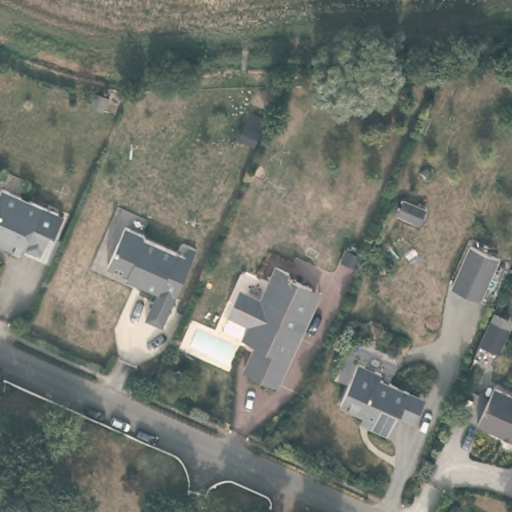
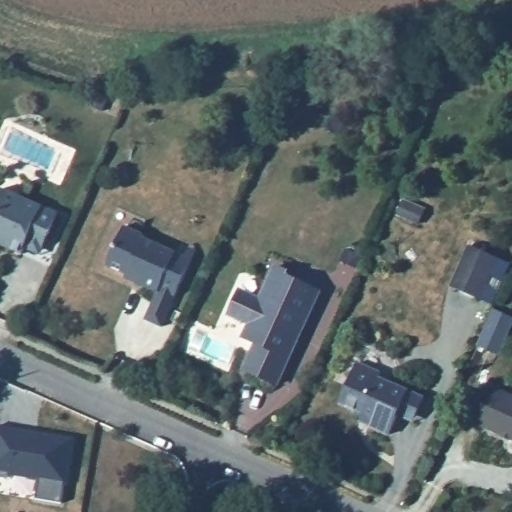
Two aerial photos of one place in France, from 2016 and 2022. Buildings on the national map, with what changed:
unchanged [(21,254),(18,261),(0,253),(0,195),(55,220),(45,242),(37,261),(21,254)]
unchanged [(402,207),(422,216),(416,230),(395,221),(402,207)]
unchanged [(157,296),(155,299),(137,292),(140,287),(104,272),(122,232),(140,241),(143,242),(142,245),(182,263),(186,254),(192,257),(189,266),(172,302),(157,296)]
unchanged [(496,264),(492,273),(477,306),(450,293),(465,260),(468,252),(496,264)]
unchanged [(241,375),(252,349),(240,343),(246,331),(231,323),(232,319),(228,317),(235,302),(240,303),(242,299),(257,306),(272,273),(285,278),(283,283),(308,294),(317,298),(296,343),(275,391),(241,375)]
unchanged [(356,420),(332,410),(350,369),(373,380),(372,384),(401,397),(417,404),(407,428),(391,421),(382,441),(362,432),(352,427),(356,420)]
unchanged [(492,394),(512,403),(512,447),(475,431),(492,394)]
new [(36,498),(39,478),(8,473),(2,478),(0,478),(0,428),(77,437),(71,484),(64,483),(60,503),(36,498)]

